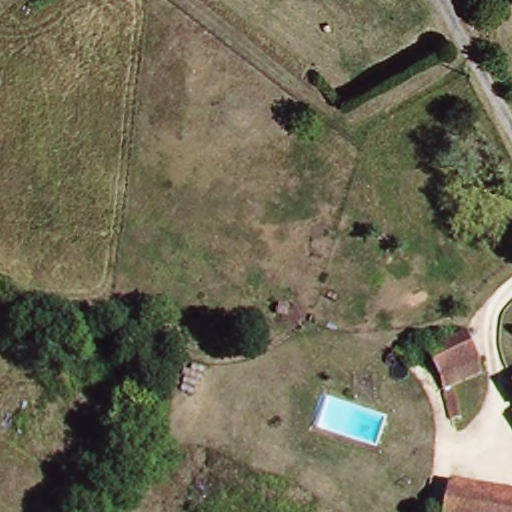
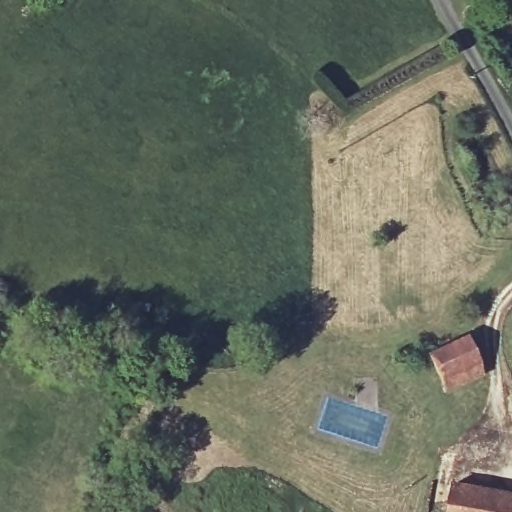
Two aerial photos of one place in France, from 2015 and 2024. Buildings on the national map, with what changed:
unchanged [(470,330),(490,372),(462,385),(470,417),(458,419),(450,376),(446,377),(433,348),(470,330)]
unchanged [(512,493),(512,512),(460,512),(465,485),(512,493)]

